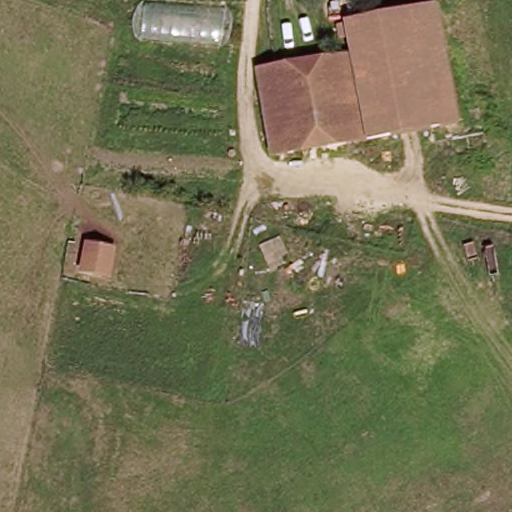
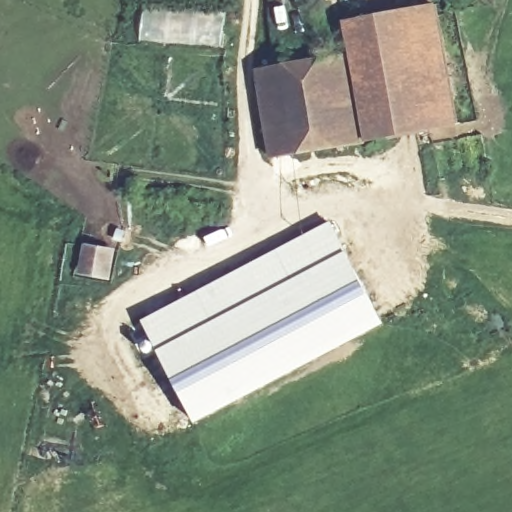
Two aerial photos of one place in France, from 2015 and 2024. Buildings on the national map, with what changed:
unchanged [(344,20),(431,7),(451,126),(363,140),(344,20)]
unchanged [(344,54),(355,142),(263,155),(252,67),(344,54)]
new [(230,271),(329,220),(385,324),(195,424),(139,320),(230,271)]
unchanged [(107,273),(84,268),(88,245),(112,250),(107,273)]

